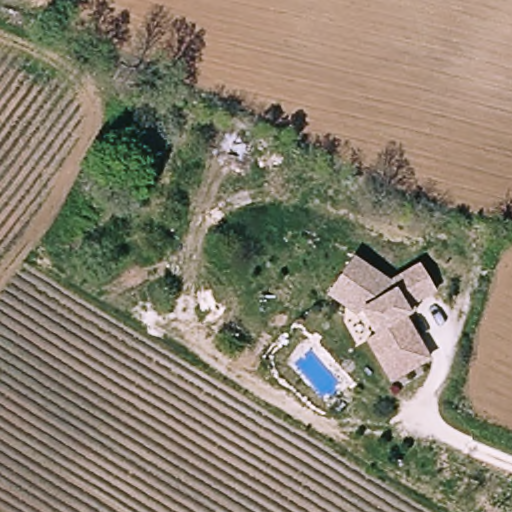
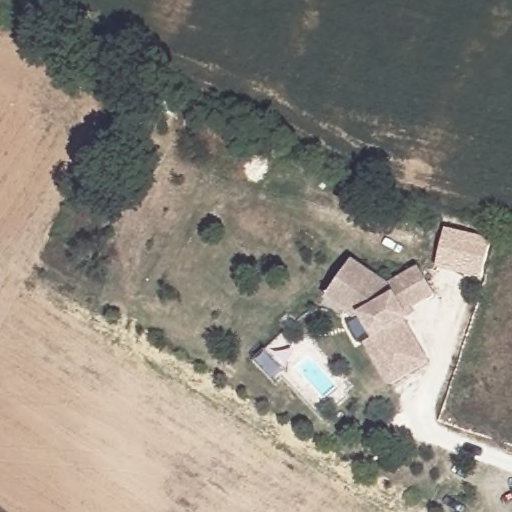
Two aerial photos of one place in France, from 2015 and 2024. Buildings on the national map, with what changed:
unchanged [(122,92),(132,72),(147,80),(137,100),(122,92)]
new [(436,267),(445,228),(491,239),(482,278),(436,267)]
unchanged [(354,320),(324,297),(351,260),(389,290),(419,270),(434,297),(403,313),(407,322),(402,325),(420,357),(391,373),(358,316),(354,320)]

